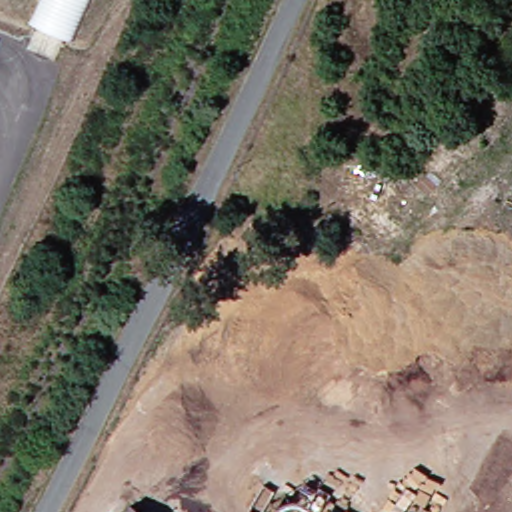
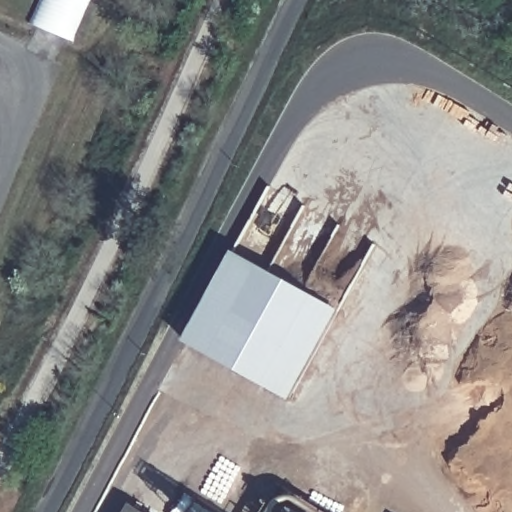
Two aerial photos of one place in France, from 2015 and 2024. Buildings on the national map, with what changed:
unchanged [(70,40),(33,26),(44,0),(87,0),(70,40)]
new [(288,399),(184,341),(233,251),(339,309),(288,399)]
unchanged [(132,512),(116,512),(121,505),(132,512)]

